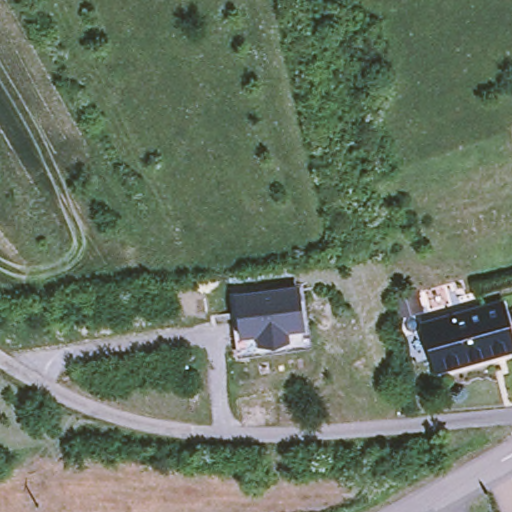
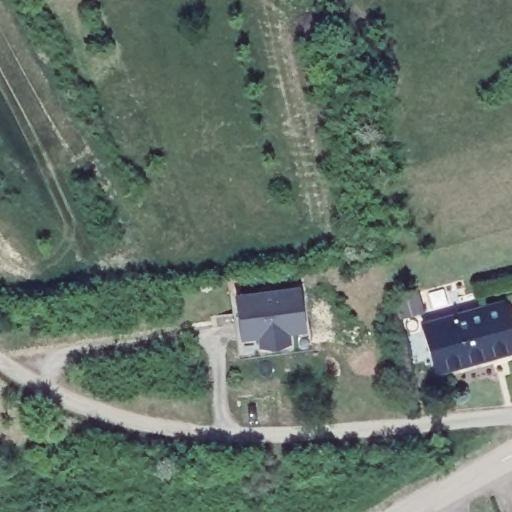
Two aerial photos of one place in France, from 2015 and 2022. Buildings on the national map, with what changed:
unchanged [(298,287),(304,334),(287,336),(288,344),(257,348),(255,339),(237,341),(231,296),(298,287)]
unchanged [(421,326),(502,302),(512,339),(512,349),(435,372),(421,326)]

